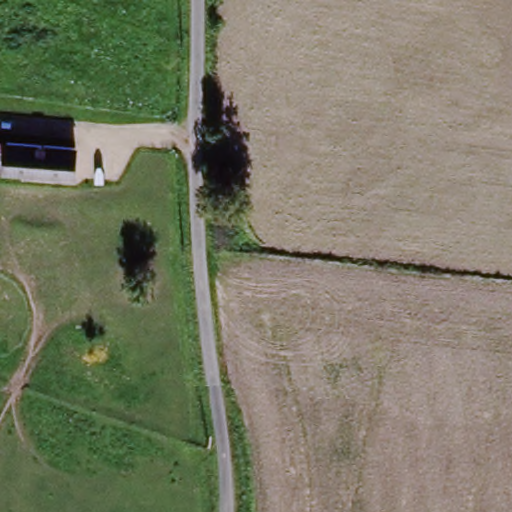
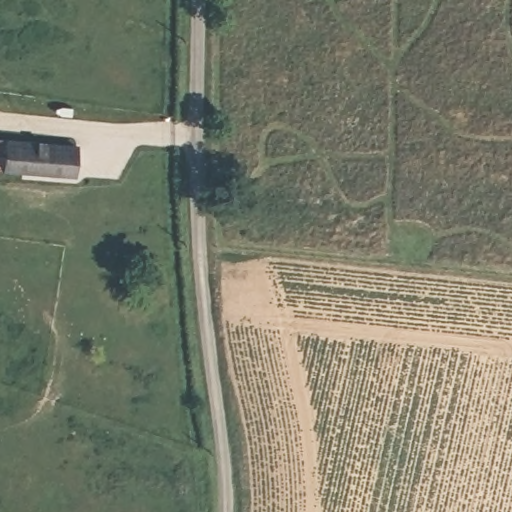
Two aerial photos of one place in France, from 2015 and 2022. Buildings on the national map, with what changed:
unchanged [(10,172),(11,143),(79,146),(77,176),(10,172)]

